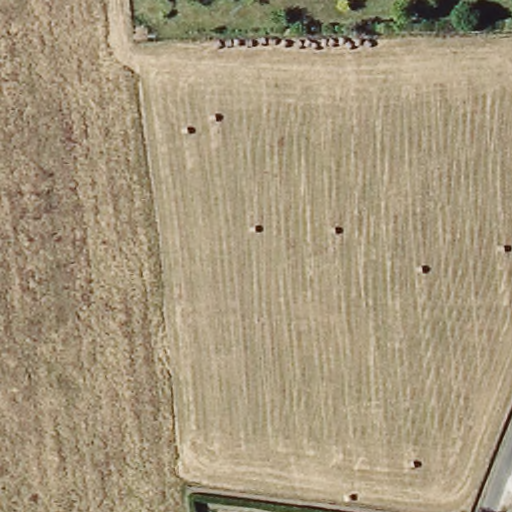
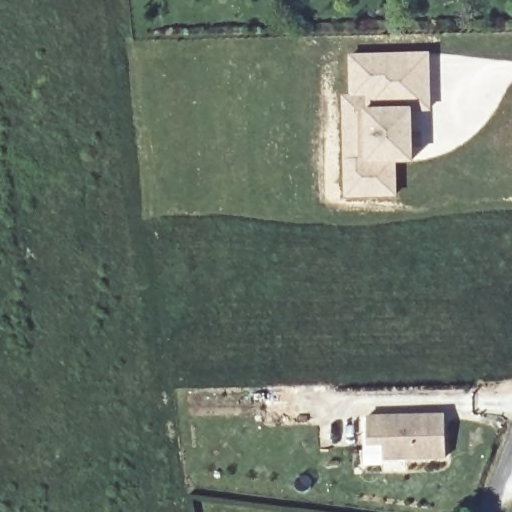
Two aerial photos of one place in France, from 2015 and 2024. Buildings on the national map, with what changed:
new [(422,144),(413,145),(414,160),(396,161),(397,195),(348,196),(347,160),(368,160),(367,97),(353,98),(353,96),(352,55),(430,54),(431,109),(413,110),(413,134),(422,134),(422,144)]
new [(353,96),(353,98),(367,97),(368,160),(347,160),(345,96),(353,96)]
new [(445,416),(446,458),(383,459),(383,444),(368,444),(367,417),(445,416)]

